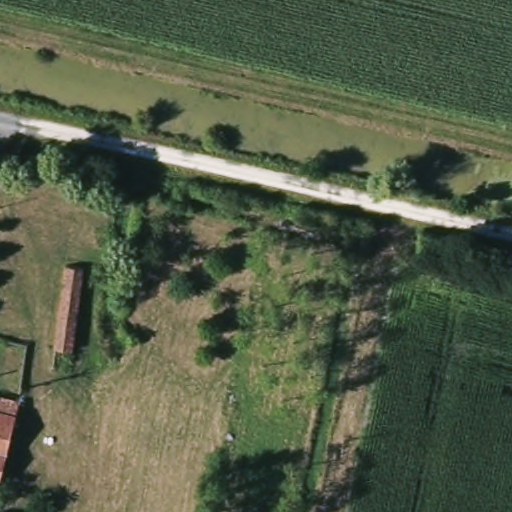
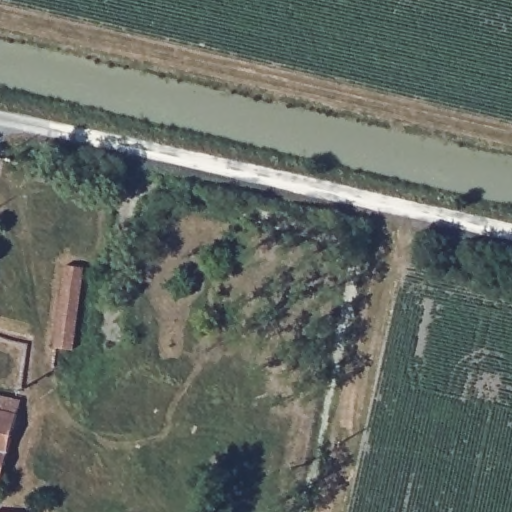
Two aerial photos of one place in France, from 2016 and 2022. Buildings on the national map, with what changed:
unchanged [(76,353),(53,352),(67,267),(89,270),(76,353)]
unchanged [(13,401),(0,481),(0,398),(13,401)]

